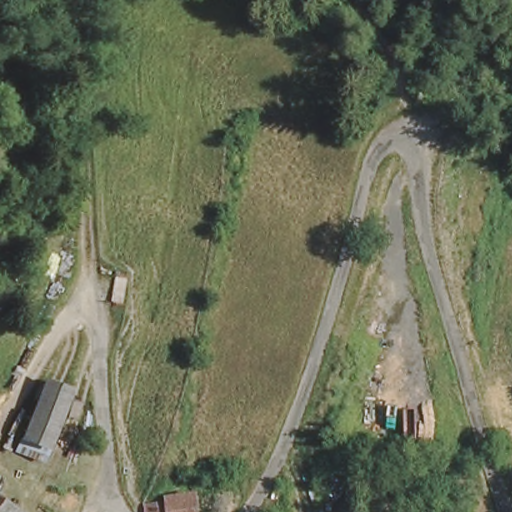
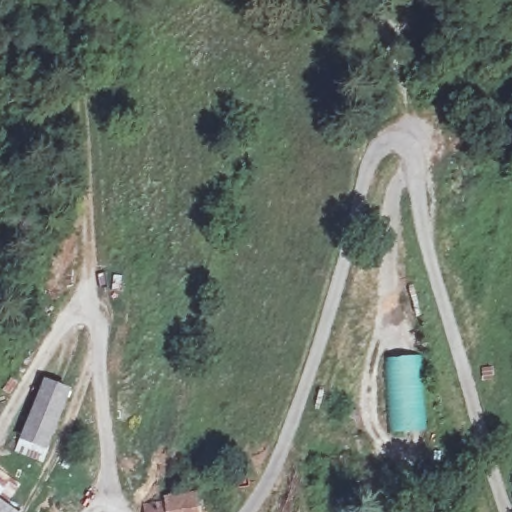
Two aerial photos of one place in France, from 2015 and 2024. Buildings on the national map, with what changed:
new [(391,357),(412,356),(417,411),(410,412),(411,432),(397,433),(397,425),(390,426),(387,392),(393,382),(391,357)]
unchanged [(75,387),(48,455),(25,446),(52,378),(75,387)]
unchanged [(200,496),(199,512),(170,512),(170,492),(200,496)]
unchanged [(16,512),(0,512),(0,501),(16,512)]

